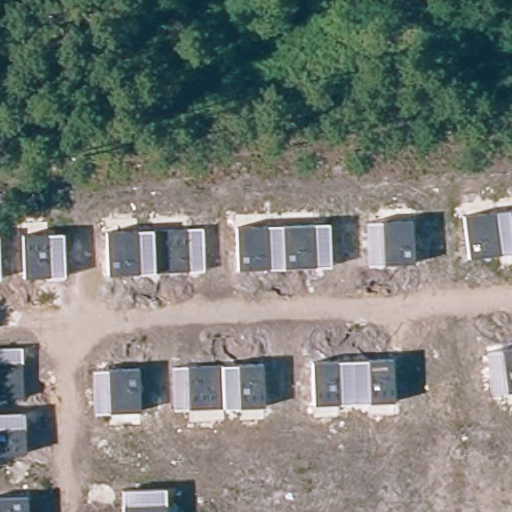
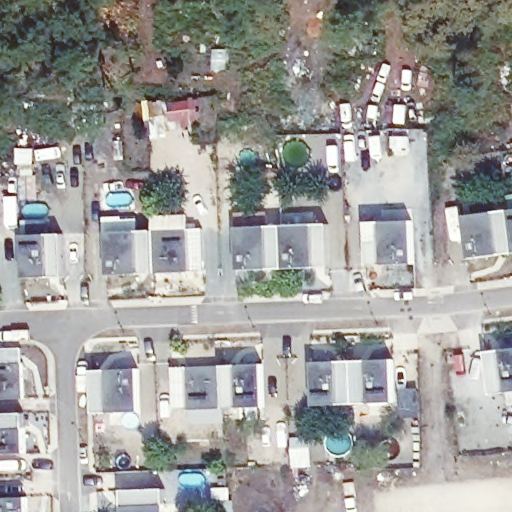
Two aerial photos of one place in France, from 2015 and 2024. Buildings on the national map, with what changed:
unchanged [(512,252),(470,258),(465,217),(512,210),(512,252)]
unchanged [(412,220),(415,263),(366,265),(365,222),(412,220)]
unchanged [(330,224),(331,267),(239,270),(237,227),(330,224)]
unchanged [(203,230),(205,271),(108,275),(106,231),(203,230)]
unchanged [(64,234),(65,276),(25,277),(24,234),(64,234)]
unchanged [(21,348),(24,397),(0,398),(0,349),(21,348)]
unchanged [(512,392),(492,395),(487,353),(512,349),(512,392)]
unchanged [(392,360),(395,402),(314,404),(311,362),(392,360)]
unchanged [(261,363),(265,407),(174,411),(171,368),(261,363)]
unchanged [(137,368),(140,411),(95,414),(92,371),(137,368)]
unchanged [(25,413),(25,454),(0,455),(0,414),(25,413)]
unchanged [(165,489),(166,512),(122,512),(121,491),(165,489)]
unchanged [(28,497),(29,512),(0,512),(0,497),(28,497)]

